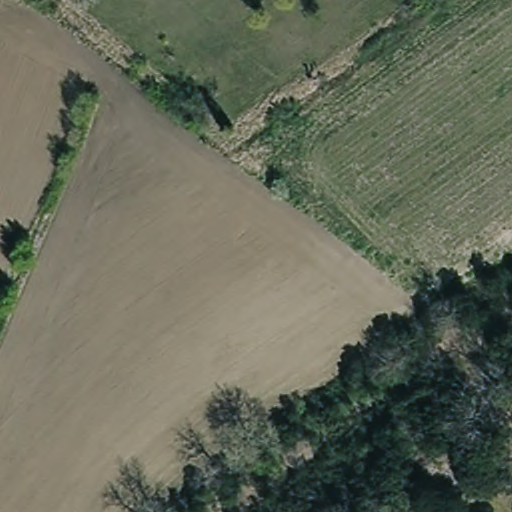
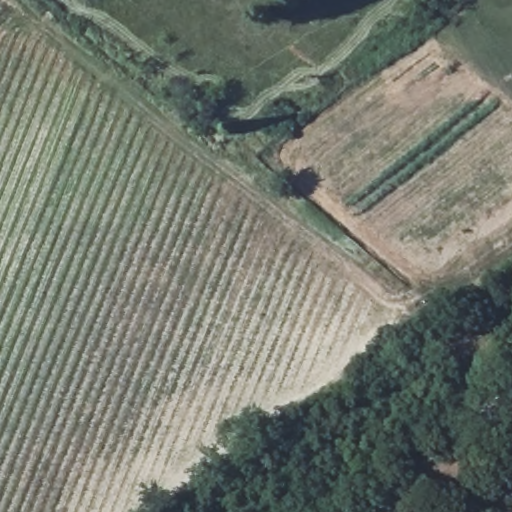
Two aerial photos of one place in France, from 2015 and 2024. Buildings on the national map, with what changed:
[]

